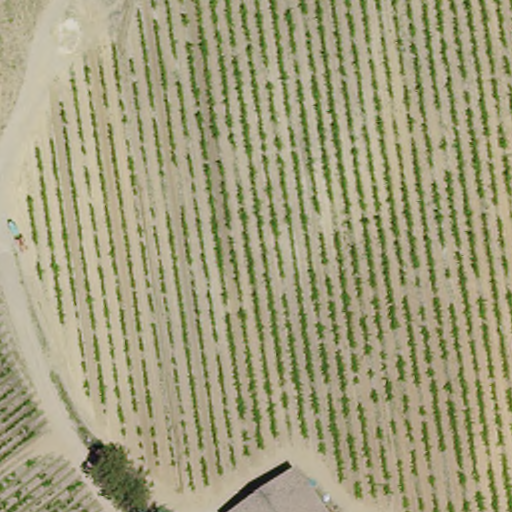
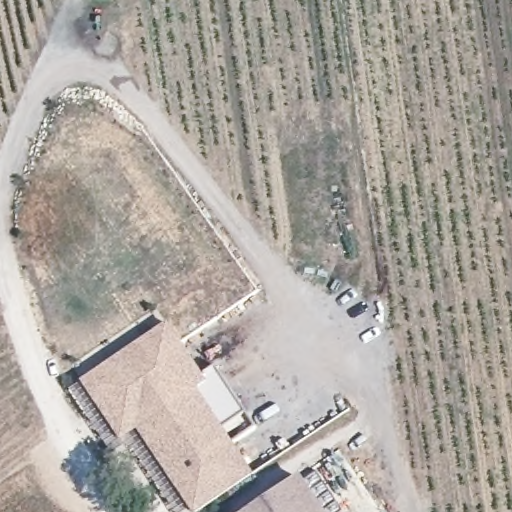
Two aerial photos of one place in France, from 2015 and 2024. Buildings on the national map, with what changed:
new [(230,441),(253,475),(199,512),(191,512),(137,430),(120,441),(80,381),(167,322),(201,373),(215,364),(255,426),(230,441)]
unchanged [(325,512),(243,512),(300,474),(325,512)]

